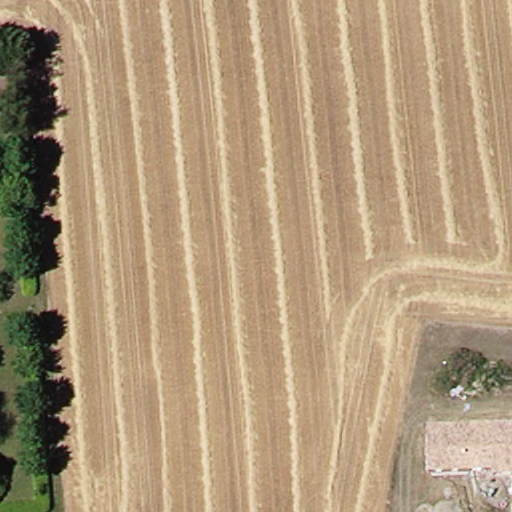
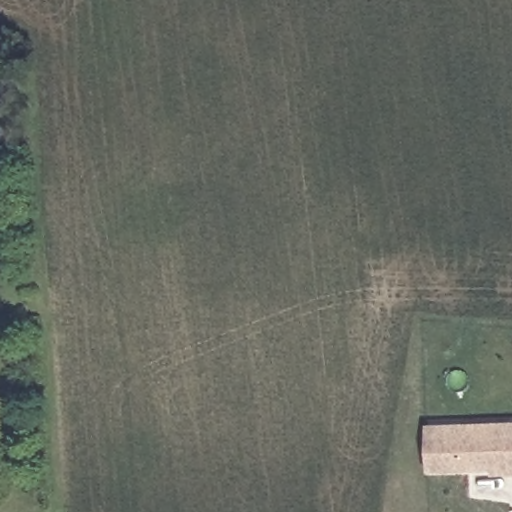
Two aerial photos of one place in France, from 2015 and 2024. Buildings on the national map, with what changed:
unchanged [(512,475),(491,476),(491,471),(427,475),(427,425),(512,421),(512,475)]

